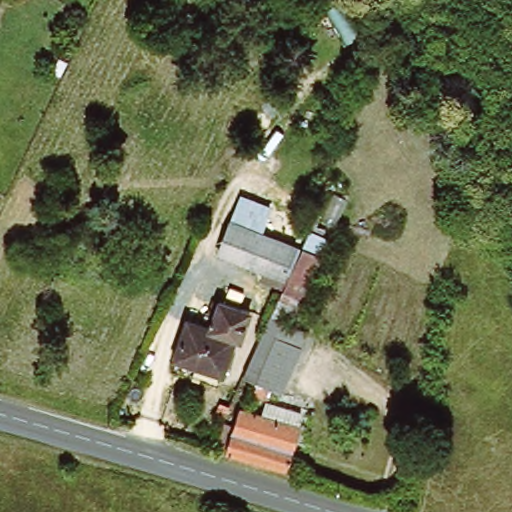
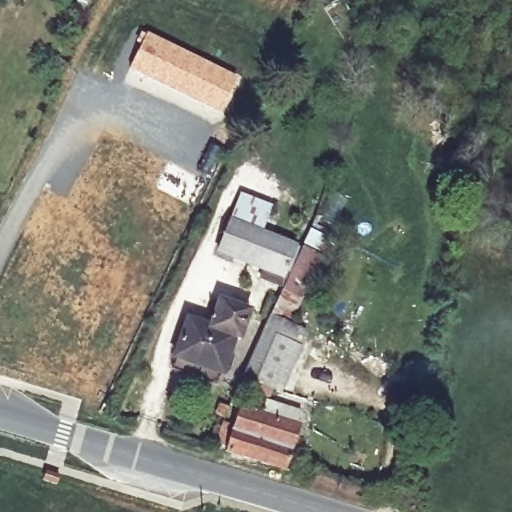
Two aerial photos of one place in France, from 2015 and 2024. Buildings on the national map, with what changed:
new [(145,31),(240,77),(220,115),(126,69),(145,31)]
unchanged [(274,202),(263,235),(231,224),(245,191),(274,202)]
unchanged [(284,275),(217,251),(226,223),(231,224),(263,235),(293,245),(284,275)]
unchanged [(310,227),(320,229),(313,251),(295,315),(308,319),(303,334),(274,327),(268,324),(284,275),(293,245),(304,249),(310,227)]
unchanged [(210,321),(218,299),(256,311),(253,322),(251,333),(238,329),(223,370),(180,356),(194,316),(210,321)]
unchanged [(303,334),(284,394),(311,403),(291,465),(232,447),(238,426),(266,411),(273,382),(260,379),(274,327),(303,334)]

